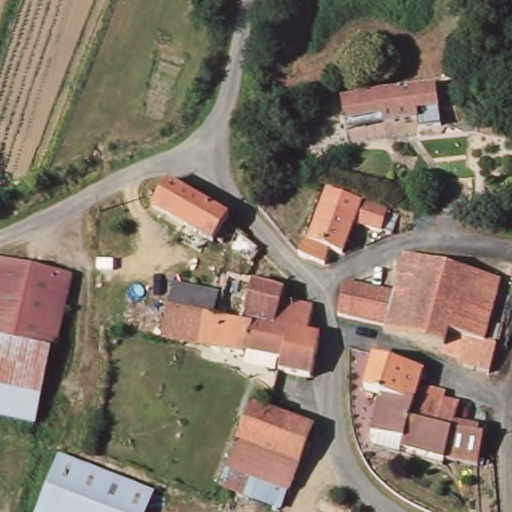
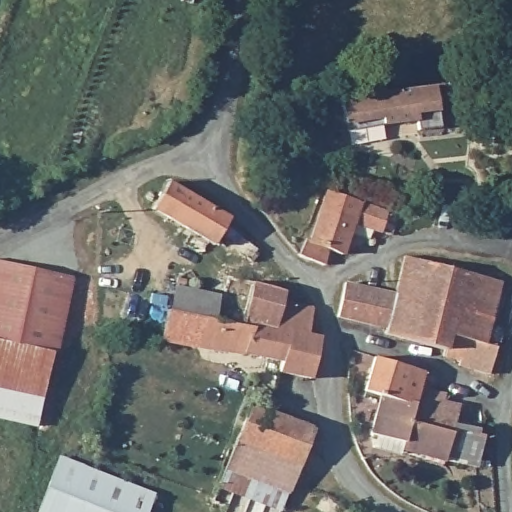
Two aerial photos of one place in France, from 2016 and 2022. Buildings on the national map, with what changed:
unchanged [(422,83),(426,130),(397,134),(396,124),(362,128),(361,120),(332,125),(323,125),(319,98),(422,83)]
unchanged [(253,262),(216,241),(214,245),(152,208),(169,181),(230,217),(228,221),(263,248),(253,262)]
unchanged [(387,235),(355,227),(347,259),(332,256),(328,269),(300,259),(307,233),(311,235),(323,189),(352,197),(392,208),(387,235)]
unchanged [(74,277),(66,314),(57,353),(0,341),(0,260),(74,277)]
unchanged [(497,357),(478,354),(481,340),(450,335),(448,347),(382,335),(383,330),(391,299),(395,300),(402,268),(495,286),(486,340),(499,343),(497,357)]
unchanged [(217,295),(223,275),(247,282),(239,324),(213,319),(217,295)]
unchanged [(239,324),(247,282),(280,291),(277,302),(308,309),(303,334),(315,337),(306,378),(273,372),(276,361),(239,353),(239,355),(207,350),(207,349),(213,319),(239,324)]
unchanged [(166,310),(171,286),(217,295),(213,319),(166,310)]
unchanged [(344,324),(340,323),(342,314),(347,290),(391,299),(383,330),(344,324)]
unchanged [(162,310),(166,310),(213,319),(207,349),(156,340),(162,310)]
unchanged [(41,427),(0,418),(0,341),(57,353),(41,427)]
unchanged [(420,371),(417,392),(450,398),(448,408),(462,410),(459,433),(487,438),(482,466),(452,461),(450,473),(415,467),(417,453),(371,445),(377,396),(363,394),(368,364),(420,371)]
unchanged [(248,403),(312,428),(288,493),(226,469),(248,403)]
unchanged [(144,512),(38,512),(60,452),(152,486),(144,512)]
unchanged [(226,469),(288,493),(282,509),(219,485),(220,483),(226,469)]

